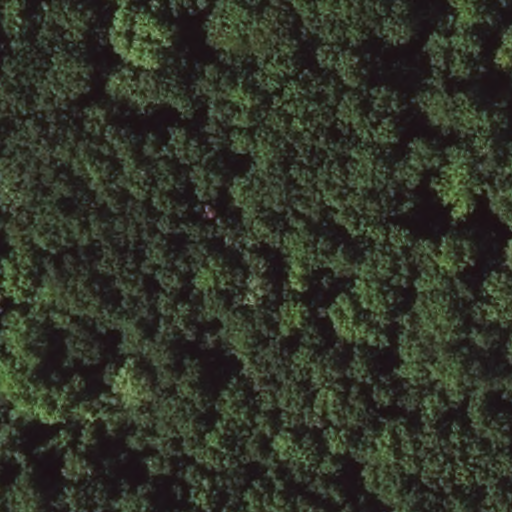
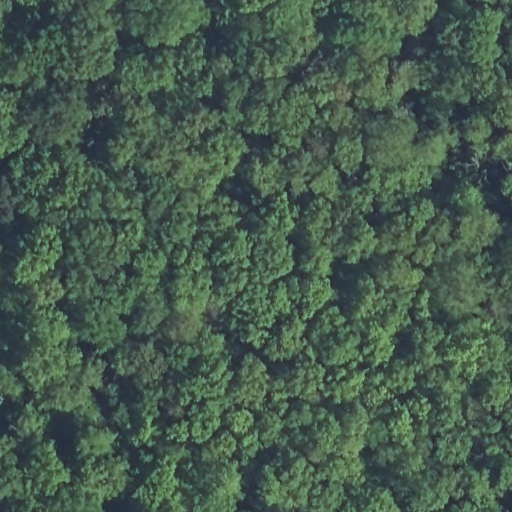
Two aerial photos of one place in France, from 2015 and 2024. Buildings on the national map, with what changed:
[]

